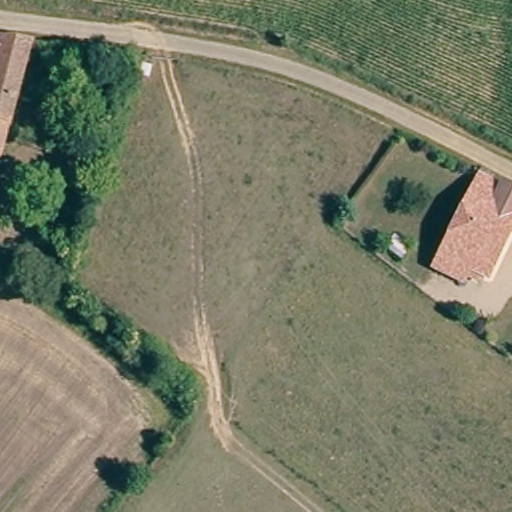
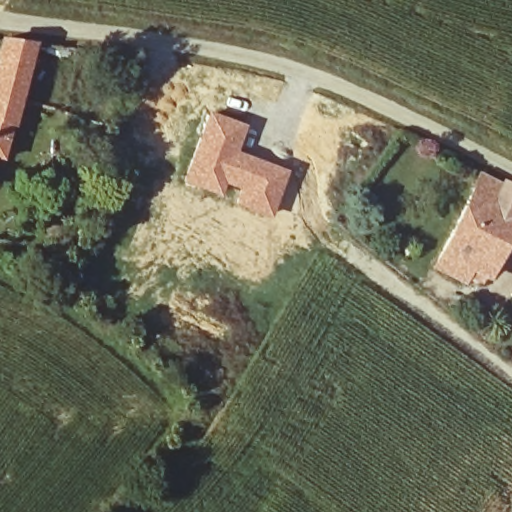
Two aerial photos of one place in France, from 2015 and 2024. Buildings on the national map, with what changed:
unchanged [(63,61),(47,60),(38,98),(26,94),(10,155),(0,153),(0,54),(3,42),(66,50),(63,61)]
new [(206,110),(246,123),(237,149),(288,169),(268,220),(231,205),(236,191),(224,186),(220,197),(180,181),(206,110)]
unchanged [(512,212),(469,290),(427,266),(478,168),(492,175),(495,170),(512,179),(512,212)]

